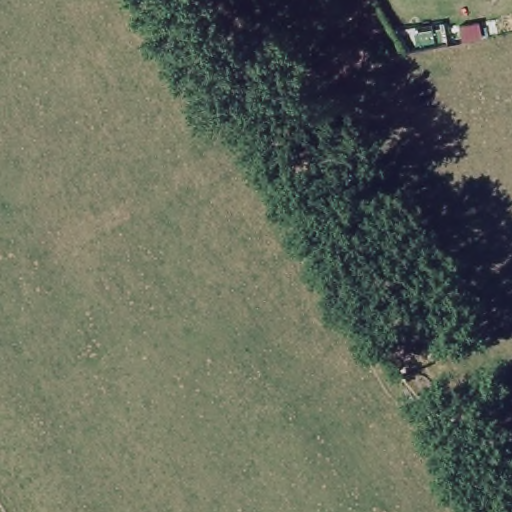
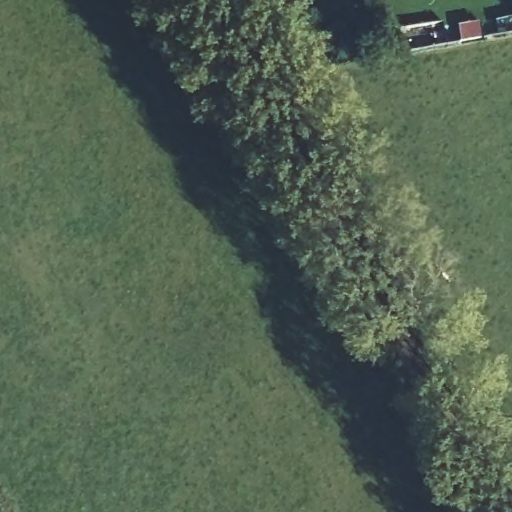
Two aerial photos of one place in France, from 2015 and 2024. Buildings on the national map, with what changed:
unchanged [(336,141),(362,186),(352,191),(326,147),(336,141)]

